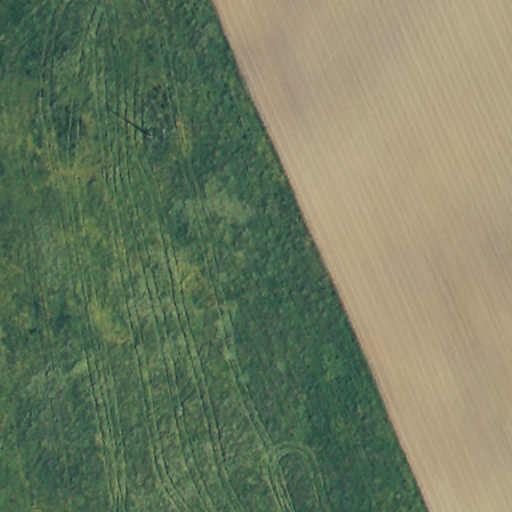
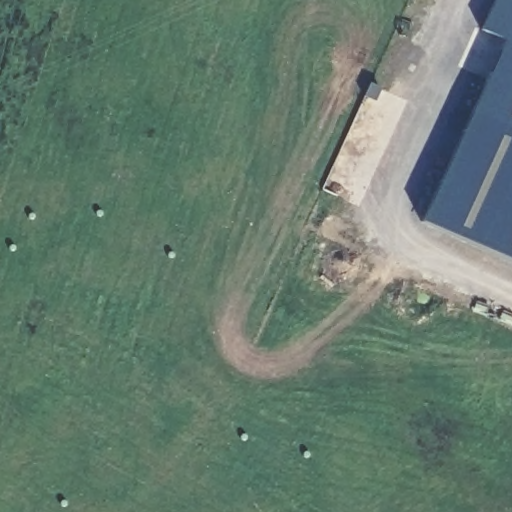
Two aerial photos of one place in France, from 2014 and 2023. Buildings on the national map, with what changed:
new [(482,28),(497,0),(512,0),(512,262),(422,221),(504,40),(482,28)]

